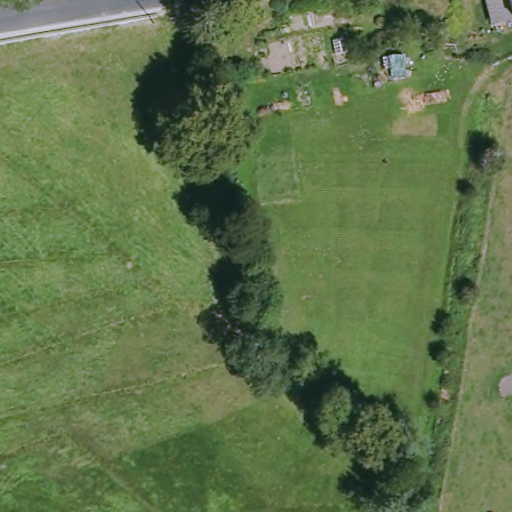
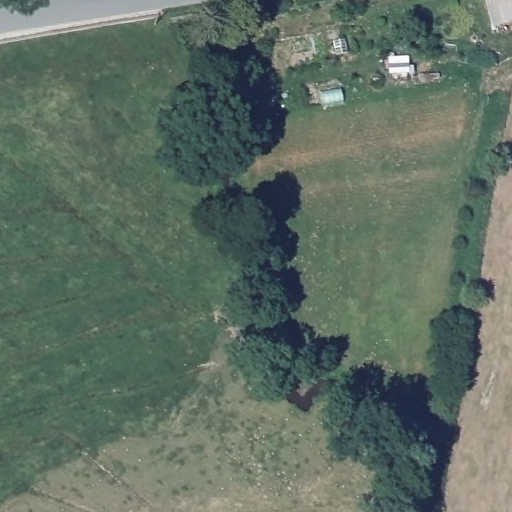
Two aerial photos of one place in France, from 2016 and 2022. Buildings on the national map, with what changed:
unchanged [(486,0),(512,0),(512,22),(493,27),(486,0)]

